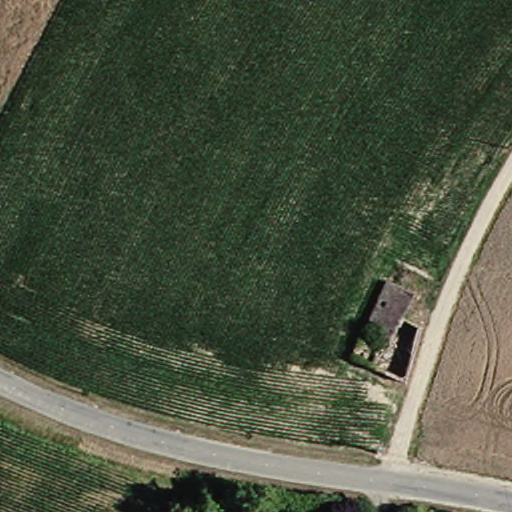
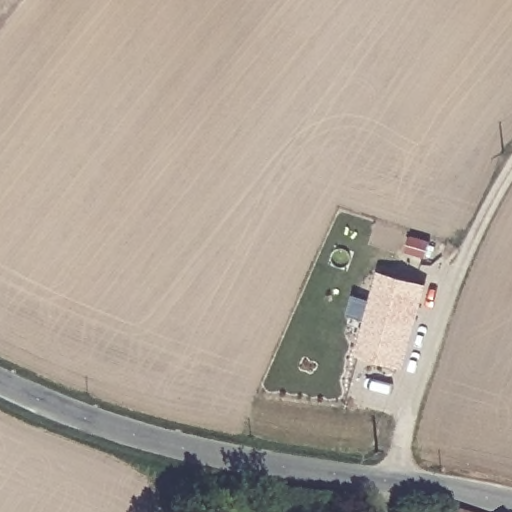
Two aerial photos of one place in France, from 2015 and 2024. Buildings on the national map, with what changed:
new [(380,268),(428,283),(405,367),(358,353),(380,268)]
demolished [(470,512),(450,512),(453,509),(470,512)]

